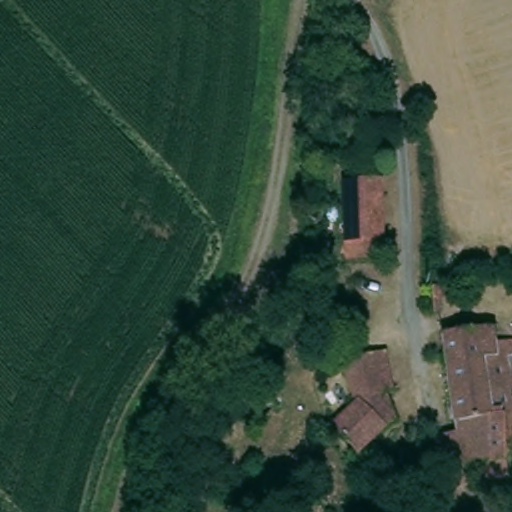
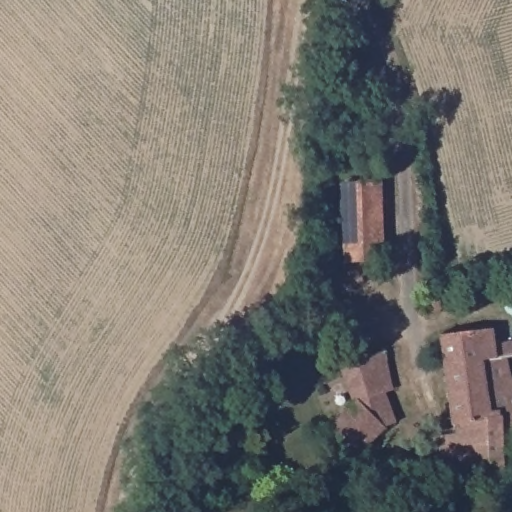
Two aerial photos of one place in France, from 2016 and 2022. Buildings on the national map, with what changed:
unchanged [(382,184),(382,260),(345,259),(345,184),(382,184)]
unchanged [(445,288),(437,289),(436,273),(444,274),(445,288)]
unchanged [(512,485),(502,486),(489,486),(488,471),(487,467),(470,467),(468,433),(462,327),(481,326),(507,325),(512,325),(512,463),(511,463),(512,468),(512,485)]
unchanged [(382,429),(376,430),(353,450),(327,419),(347,397),(347,361),(363,361),(364,400),(382,399),(382,429)]
unchanged [(392,362),(391,399),(382,399),(364,400),(363,361),(392,362)]
unchanged [(440,436),(468,433),(470,467),(471,487),(445,489),(443,473),(440,436)]

